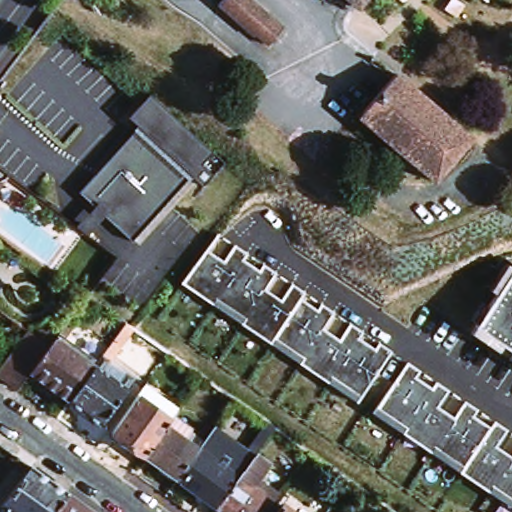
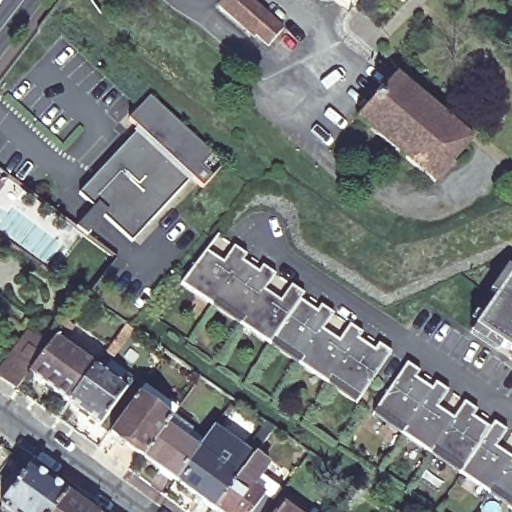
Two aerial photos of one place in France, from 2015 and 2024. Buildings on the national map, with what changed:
unchanged [(268,46),(254,35),(253,36),(218,7),(224,0),(249,0),(283,28),(268,46)]
unchanged [(341,0),(365,0),(356,12),(341,0)]
unchanged [(435,187),(357,122),(394,77),(472,142),(435,187)]
unchanged [(132,246),(79,199),(105,171),(110,175),(145,138),(130,123),(152,100),(199,143),(226,168),(204,191),(194,181),(132,246)]
unchanged [(5,185),(1,192),(0,192),(0,182),(5,185)]
unchanged [(184,284),(206,252),(222,264),(235,244),(248,253),(244,259),(260,270),(263,264),(275,273),(264,289),(283,300),(294,284),(306,293),(302,299),(317,311),(323,304),(334,312),(323,329),(341,342),(353,324),(364,332),(360,340),(375,349),(381,342),(393,352),(357,402),(184,284)]
unchanged [(490,290),(509,264),(512,267),(512,352),(504,347),(499,353),(472,334),(499,295),(490,290)]
unchanged [(77,330),(64,348),(97,371),(70,409),(29,379),(51,349),(69,325),(77,330)]
unchanged [(111,367),(127,379),(135,385),(102,432),(70,409),(97,371),(128,327),(136,333),(111,367)]
unchanged [(30,334),(51,349),(29,379),(17,394),(0,382),(0,374),(30,334)]
unchanged [(409,362),(422,371),(417,379),(434,391),(438,384),(448,390),(437,407),(457,419),(468,402),(478,409),(473,417),(491,429),(496,422),(507,429),(495,447),(512,458),(512,506),(375,413),(409,362)]
unchanged [(140,393),(173,417),(167,426),(163,431),(141,463),(108,438),(134,401),(140,393)]
unchanged [(218,439),(208,453),(224,465),(235,452),(243,458),(264,428),(271,433),(252,459),(213,512),(208,512),(175,488),(177,484),(173,481),(194,453),(209,433),(218,439)]
unchanged [(163,431),(194,453),(173,481),(170,485),(141,463),(163,431)]
unchanged [(252,459),(265,469),(249,492),(270,507),(266,512),(213,512),(252,459)]
unchanged [(57,512),(3,512),(37,464),(73,491),(57,512)]
unchanged [(103,512),(57,512),(73,491),(103,512)]
unchanged [(276,509),(279,512),(274,512),(276,509)]

